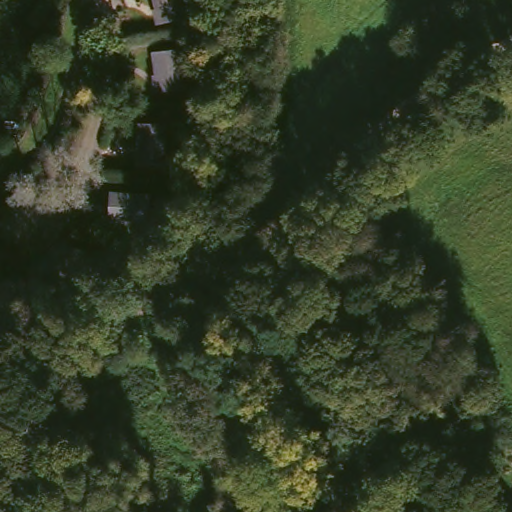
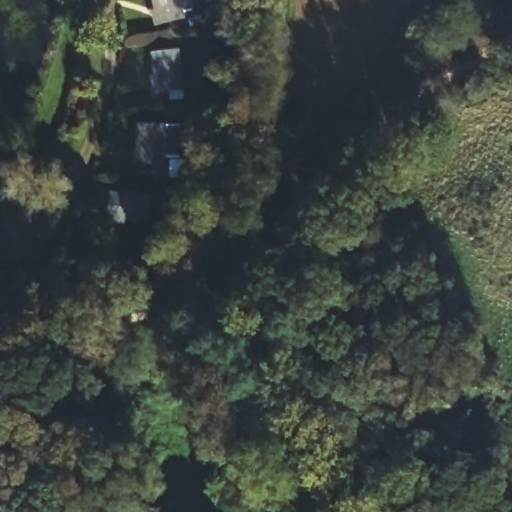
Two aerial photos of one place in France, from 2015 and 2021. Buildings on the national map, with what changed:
unchanged [(180,22),(149,28),(147,0),(176,0),(180,22)]
unchanged [(179,50),(185,92),(155,96),(152,56),(179,50)]
unchanged [(159,124),(161,166),(132,168),(133,124),(159,124)]
unchanged [(150,196),(147,242),(117,239),(117,194),(150,196)]

